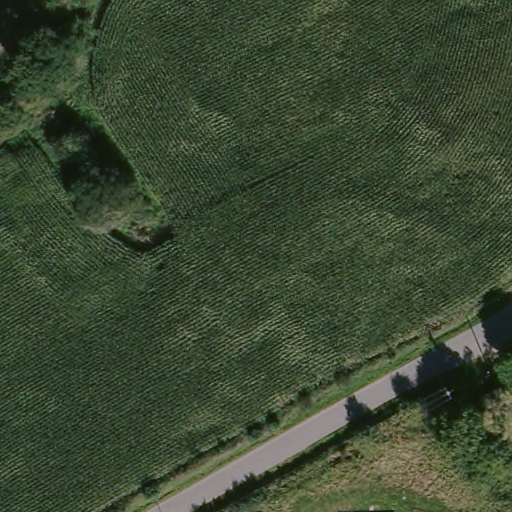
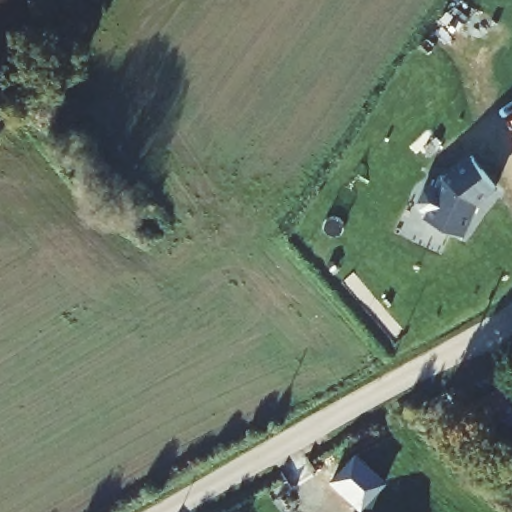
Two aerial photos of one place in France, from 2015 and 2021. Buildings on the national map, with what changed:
new [(497,190),(479,203),(465,236),(424,218),(426,213),(419,210),(416,203),(424,187),(431,185),(437,188),(442,178),(471,156),(497,190)]
unchanged [(508,414),(484,424),(472,399),(497,387),(508,414)]

